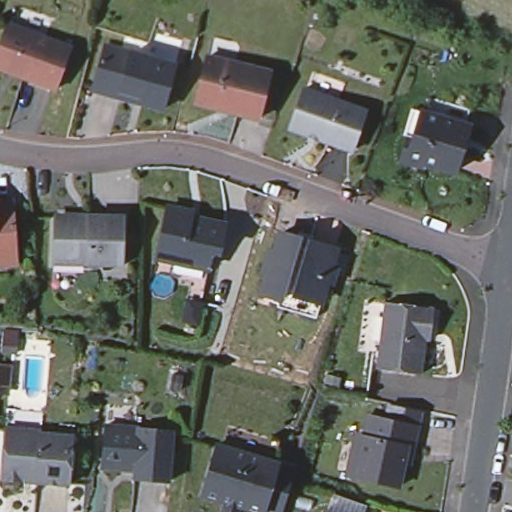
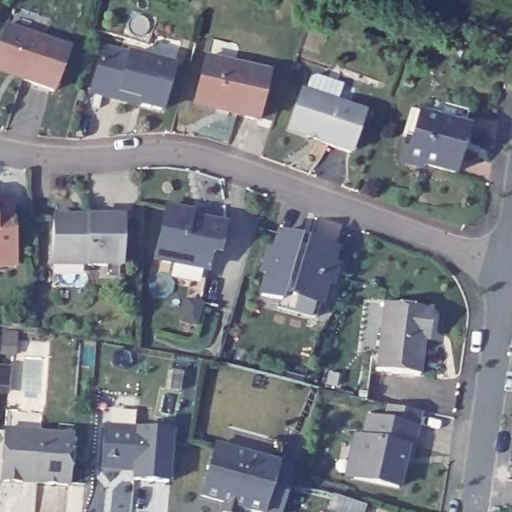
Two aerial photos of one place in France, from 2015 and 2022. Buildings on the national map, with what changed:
unchanged [(5,25),(69,47),(54,90),(17,77),(0,70),(0,37),(5,25)]
unchanged [(86,95),(97,50),(135,61),(168,70),(155,115),(135,109),(112,102),(86,95)]
unchanged [(194,103),(206,57),(268,72),(257,119),(227,111),(216,108),(194,103)]
unchanged [(301,88),(364,110),(350,150),(287,128),(301,88)]
unchanged [(444,176),(412,166),(410,170),(390,164),(397,140),(402,141),(410,116),(417,117),(422,102),(458,114),(453,129),(458,131),(444,176)]
unchanged [(5,204),(10,268),(0,269),(0,204),(5,204)]
unchanged [(219,248),(212,246),(207,267),(155,257),(166,206),(191,212),(190,216),(202,219),(225,224),(219,248)]
unchanged [(117,269),(47,267),(48,225),(54,220),(67,220),(82,220),(117,221),(117,269)]
unchanged [(278,297),(261,292),(267,272),(262,271),(267,250),(273,251),(278,232),(298,237),(308,240),(335,247),(330,263),(335,265),(330,282),(325,281),(315,316),(277,306),(278,297)]
unchanged [(376,367),(384,301),(433,307),(431,327),(430,339),(424,338),(420,373),(376,367)]
unchanged [(398,466),(392,490),(348,480),(340,478),(349,438),(357,440),(362,420),(380,423),(383,407),(415,414),(411,430),(406,452),(402,467),(398,466)]
unchanged [(0,479),(4,428),(40,430),(40,433),(71,435),(68,484),(40,482),(22,481),(0,479)]
unchanged [(95,472),(99,430),(167,435),(162,486),(129,482),(130,475),(117,473),(95,472)]
unchanged [(225,501),(201,494),(216,443),(294,467),(289,484),(281,512),(263,512),(240,505),(237,512),(227,512),(222,511),(225,501)]

